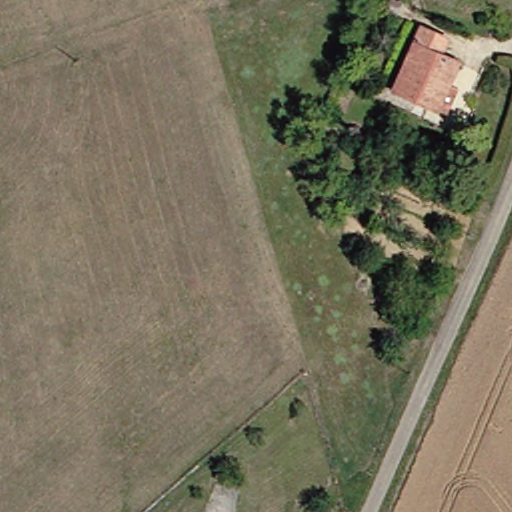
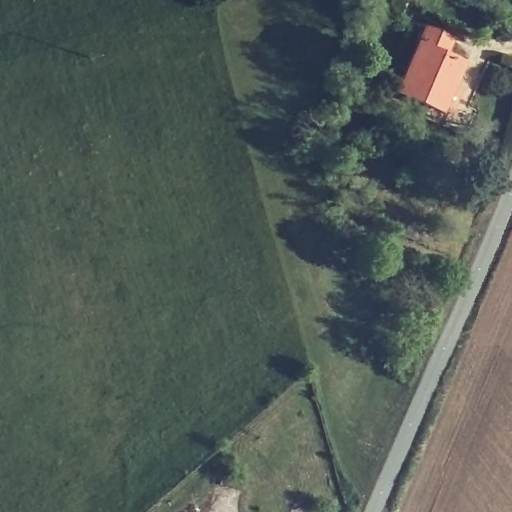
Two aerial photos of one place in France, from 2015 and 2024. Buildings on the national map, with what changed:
unchanged [(434,111),(400,96),(426,32),(450,43),(445,59),(462,68),(455,86),(442,115),(434,111)]

